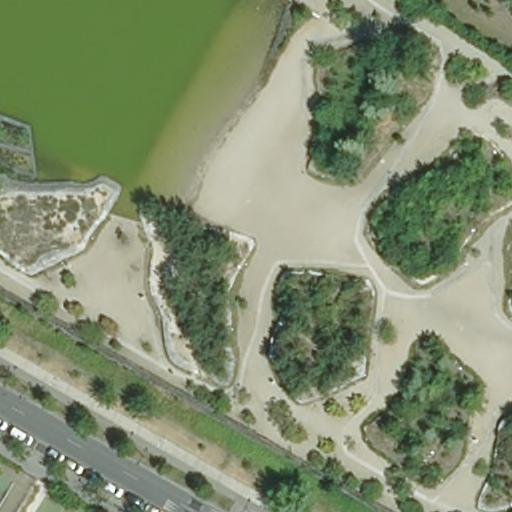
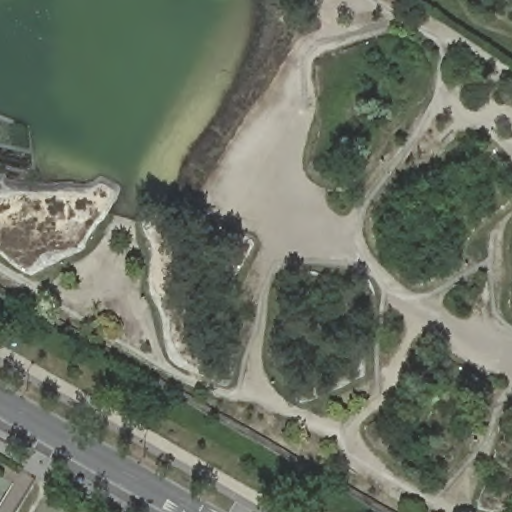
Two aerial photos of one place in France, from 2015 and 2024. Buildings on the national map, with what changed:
[]

